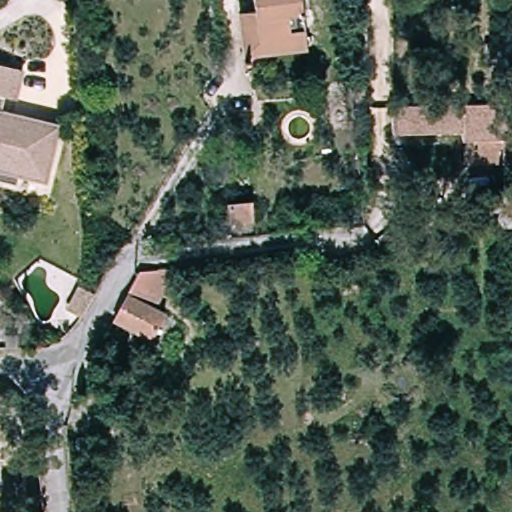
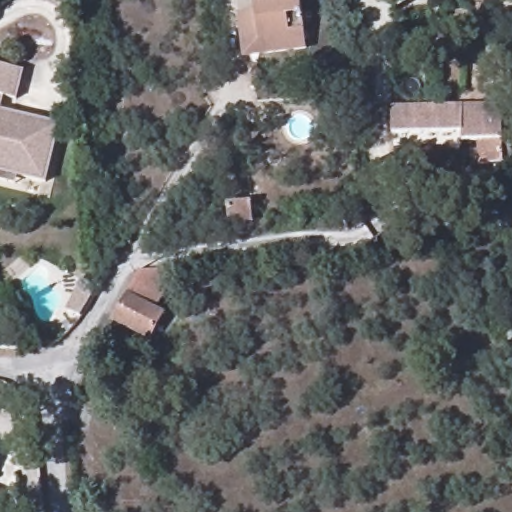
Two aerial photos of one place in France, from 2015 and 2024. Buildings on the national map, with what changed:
unchanged [(250,0),(297,0),(303,51),(239,59),(233,13),(251,11),(250,0)]
unchanged [(17,99),(6,97),(3,112),(60,125),(48,181),(19,175),(0,171),(0,64),(23,69),(17,99)]
unchanged [(501,105),(502,165),(478,166),(477,142),(462,142),(462,134),(390,135),(390,107),(501,105)]
unchanged [(17,184),(0,180),(0,171),(19,175),(17,184)]
unchanged [(245,204),(248,222),(224,225),(224,207),(245,204)]
unchanged [(156,312),(163,317),(150,342),(110,324),(132,275),(173,268),(156,312)]

